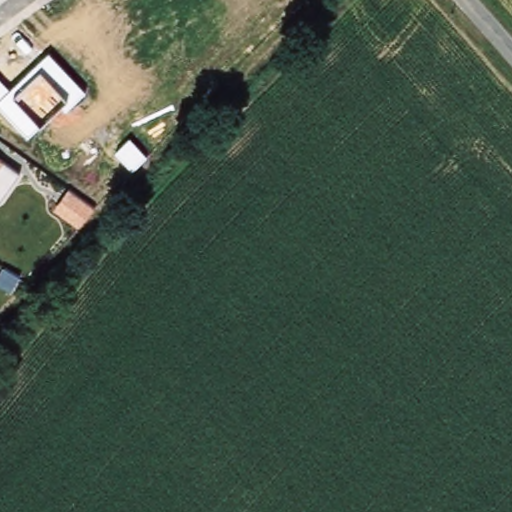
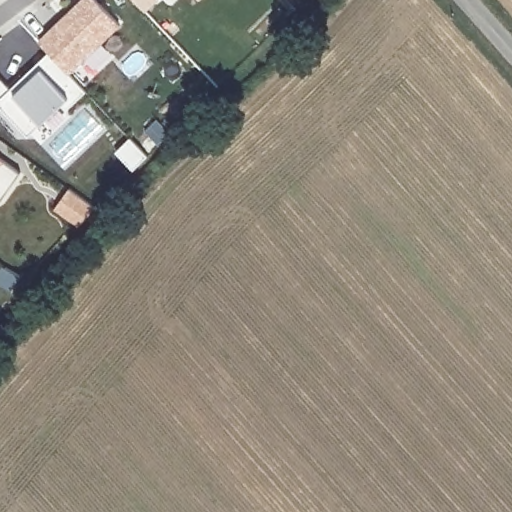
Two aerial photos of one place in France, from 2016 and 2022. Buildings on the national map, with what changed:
new [(71,72),(50,51),(39,39),(80,0),(96,0),(120,24),(71,72)]
new [(134,4),(130,0),(139,0),(134,4)]
unchanged [(11,87),(50,51),(87,90),(66,111),(60,105),(41,122),(28,136),(0,107),(0,75),(11,87)]
new [(120,131),(138,149),(123,163),(106,145),(120,131)]
unchanged [(3,161),(18,173),(0,197),(0,160),(3,161)]
unchanged [(69,190),(94,206),(79,225),(55,210),(69,190)]

